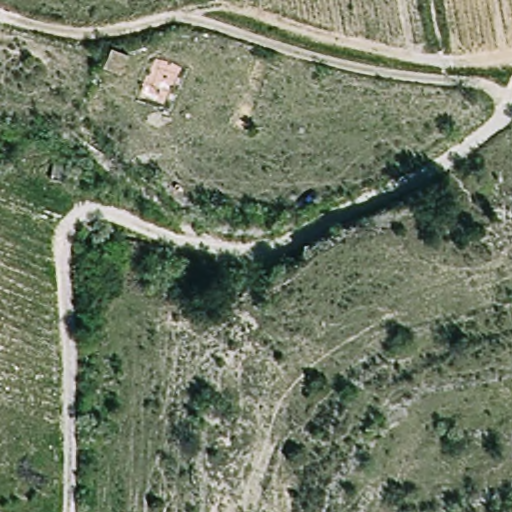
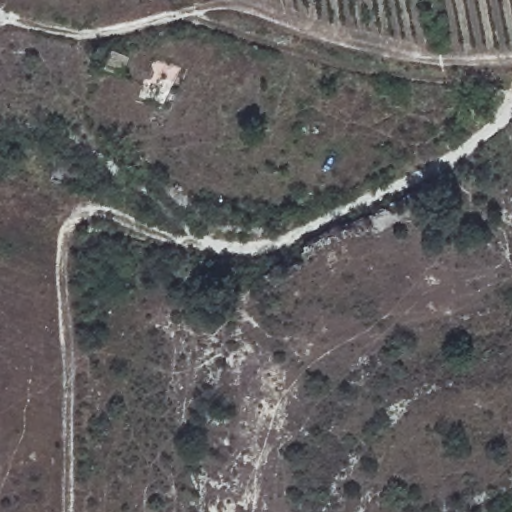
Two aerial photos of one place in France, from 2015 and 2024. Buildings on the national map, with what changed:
unchanged [(121,73),(106,66),(114,46),(129,52),(121,73)]
unchanged [(78,164),(78,175),(66,174),(65,182),(51,181),(51,169),(51,161),(73,161),(78,164)]

